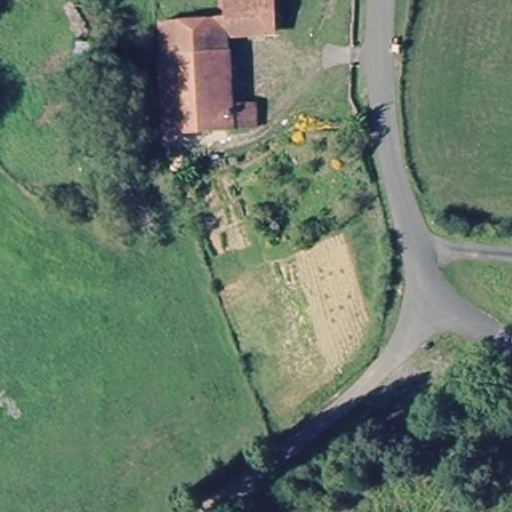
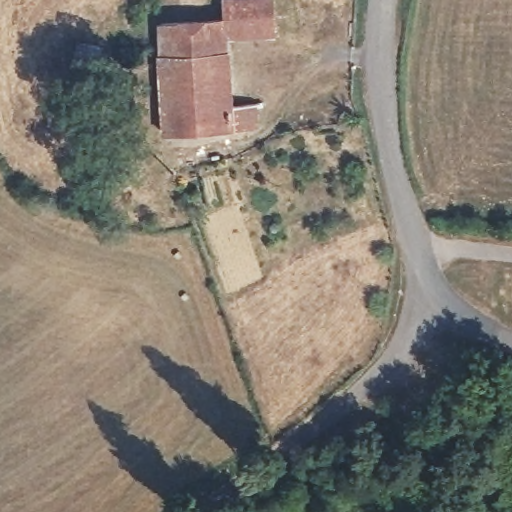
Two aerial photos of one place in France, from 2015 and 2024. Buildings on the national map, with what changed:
unchanged [(225,0),(275,0),(273,30),(225,28),(225,0)]
unchanged [(224,130),(166,130),(162,25),(225,28),(224,130)]

